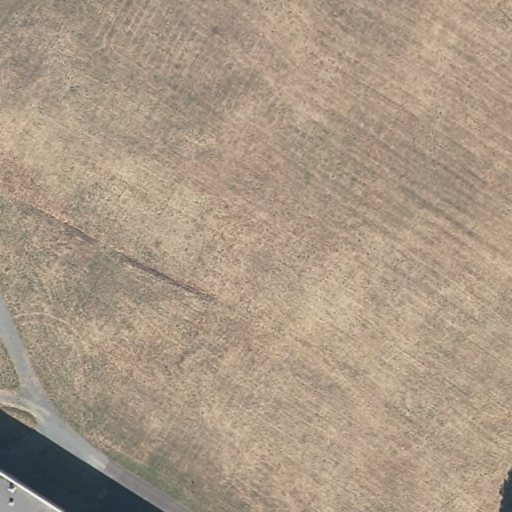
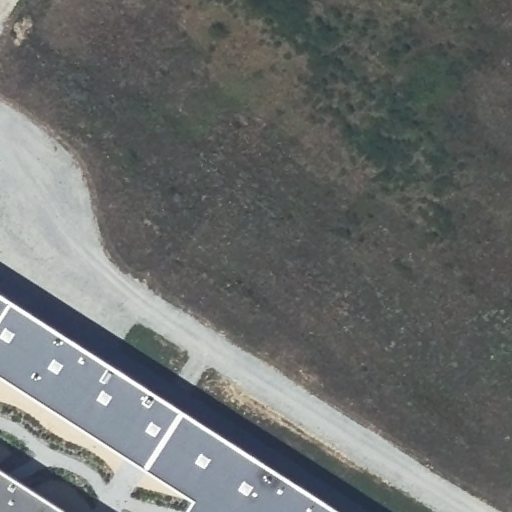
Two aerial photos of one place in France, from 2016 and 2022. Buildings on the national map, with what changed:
new [(0,315),(10,298),(344,512),(184,512),(192,498),(0,374),(0,315)]
unchanged [(70,512),(0,512),(0,467),(70,512)]

